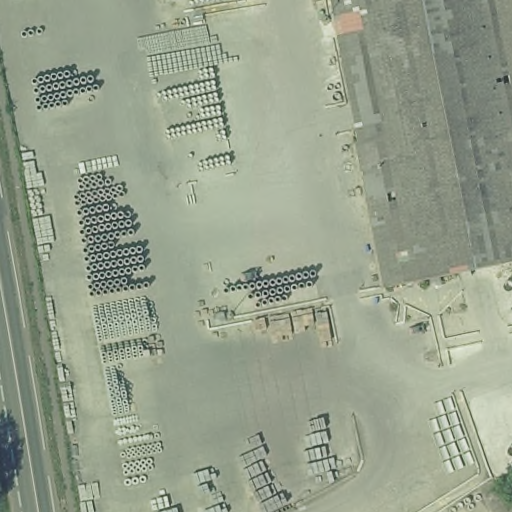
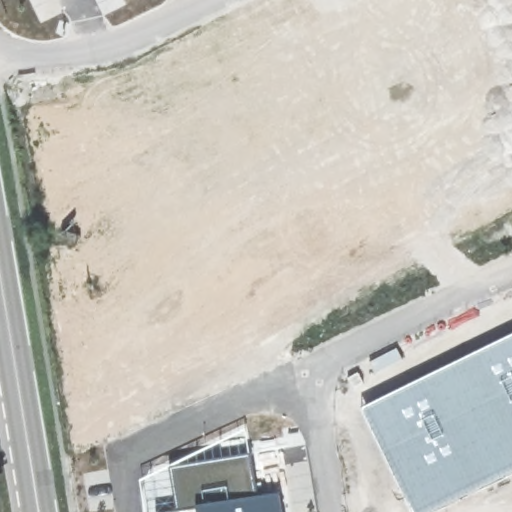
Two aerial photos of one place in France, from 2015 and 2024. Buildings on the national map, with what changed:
demolished [(334,0),(512,0),(512,261),(385,288),(334,0)]
new [(512,476),(435,512),(410,512),(362,409),(512,336),(512,476)]
new [(253,461),(260,501),(282,498),(284,512),(180,512),(174,474),(253,461)]

